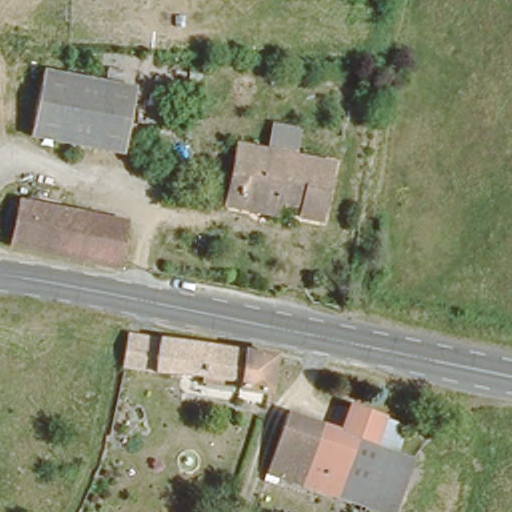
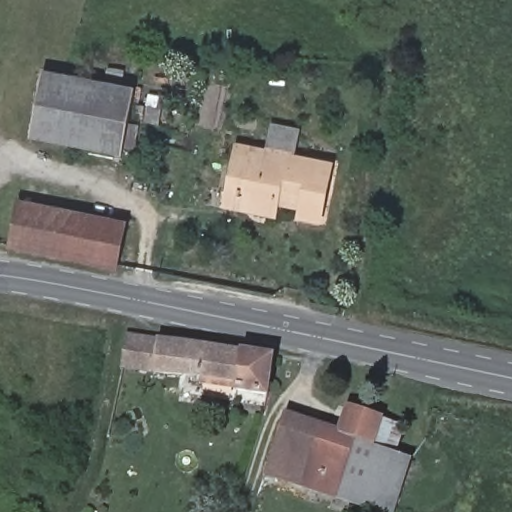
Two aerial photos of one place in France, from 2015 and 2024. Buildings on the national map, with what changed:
unchanged [(43,69),(136,88),(121,154),(29,134),(43,69)]
unchanged [(238,141),(267,148),(292,153),(331,161),(319,214),(299,209),(301,200),(277,194),(273,209),(252,204),(224,198),(228,186),(238,141)]
unchanged [(50,250),(6,241),(16,197),(122,219),(113,263),(94,259),(50,250)]
unchanged [(238,346),(278,353),(278,360),(269,392),(239,388),(239,381),(196,374),(122,366),(129,334),(238,346)]
unchanged [(288,414),(346,431),(353,411),(385,422),(379,445),(354,438),(349,460),(366,466),(360,492),(334,482),(332,495),(269,474),(288,414)]
unchanged [(124,418),(121,429),(111,427),(114,416),(124,418)]
unchanged [(404,429),(397,451),(416,457),(396,512),(384,512),(332,495),(334,482),(360,492),(366,466),(349,460),(354,438),(379,445),(385,422),(404,429)]

